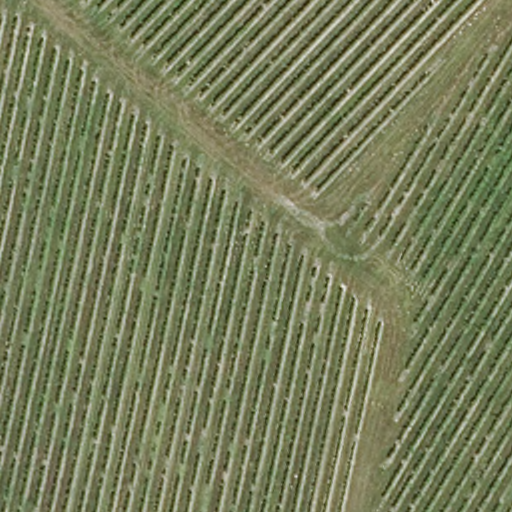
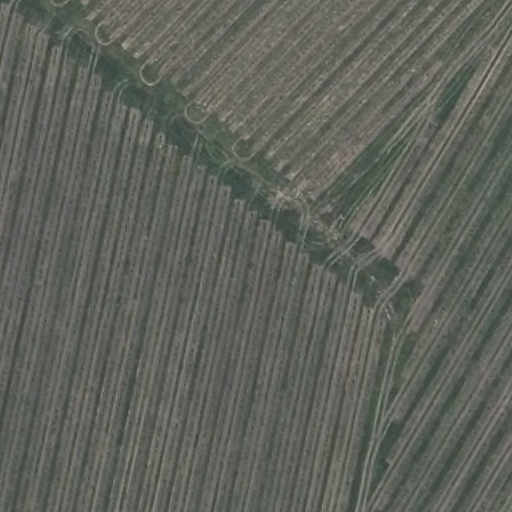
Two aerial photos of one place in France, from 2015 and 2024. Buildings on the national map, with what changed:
[]

